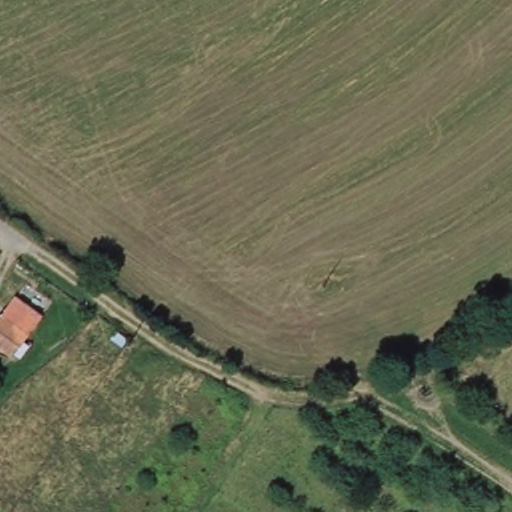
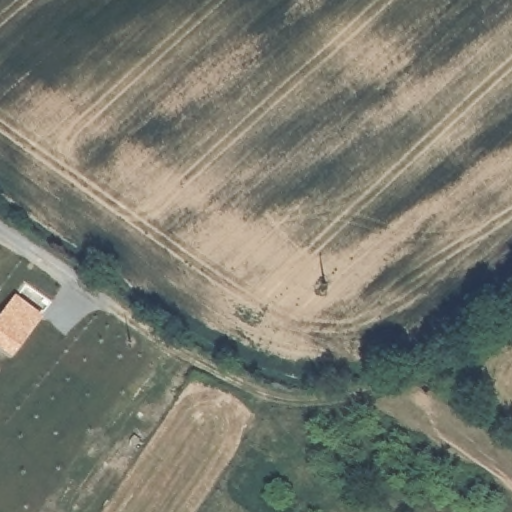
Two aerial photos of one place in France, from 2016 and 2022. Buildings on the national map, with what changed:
unchanged [(8,355),(0,350),(0,313),(14,295),(38,313),(24,333),(19,343),(8,355)]

